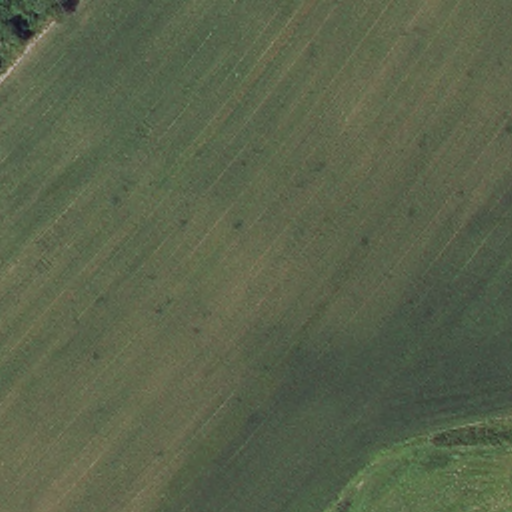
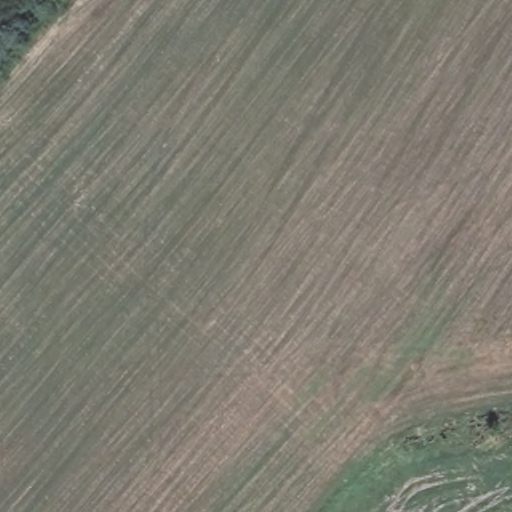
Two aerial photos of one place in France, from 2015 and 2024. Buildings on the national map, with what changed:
[]

